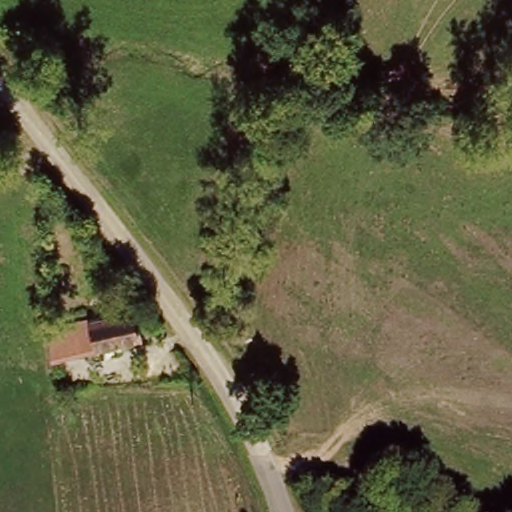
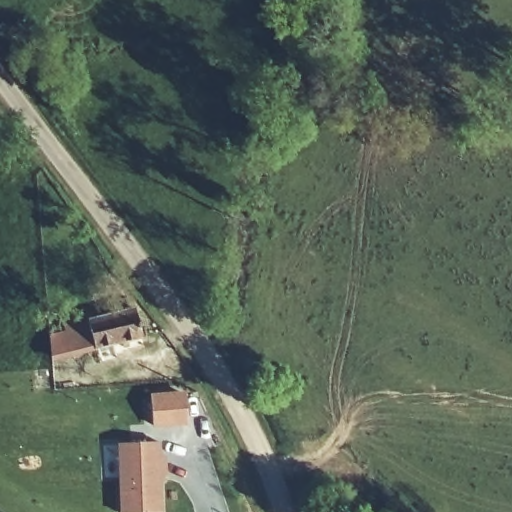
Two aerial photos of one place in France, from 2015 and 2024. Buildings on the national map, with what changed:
unchanged [(49,334),(64,329),(62,323),(133,306),(140,336),(71,352),(54,357),(49,334)]
new [(163,512),(121,512),(118,443),(161,441),(163,512)]

